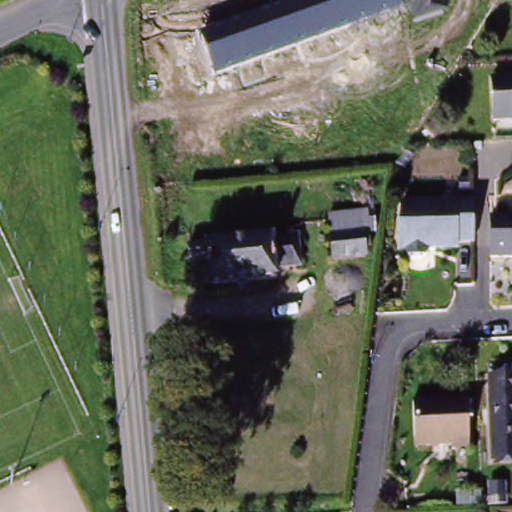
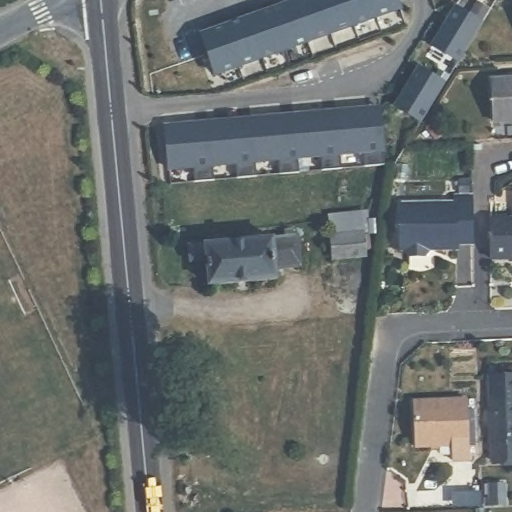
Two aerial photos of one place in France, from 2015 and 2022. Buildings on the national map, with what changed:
unchanged [(405,0),(407,5),(259,56),(244,15),(288,0),(405,0)]
new [(454,60),(427,44),(451,5),(477,22),(454,60)]
unchanged [(204,29),(244,15),(259,56),(218,70),(205,31),(204,29)]
new [(414,66),(440,82),(417,121),(391,105),(414,66)]
unchanged [(490,79),(512,78),(512,120),(492,121),(490,79)]
new [(242,115),(253,114),(284,111),(295,110),(327,107),(339,106),(369,103),(382,102),(384,113),(388,161),(366,163),(365,148),(342,151),(343,165),(324,167),(322,152),(300,154),(301,169),(282,171),(280,156),(257,158),(259,173),(240,175),(239,160),(215,162),(217,177),(197,178),(197,164),(172,166),(168,122),(199,119),(210,118),(242,115)]
unchanged [(510,218),(509,193),(512,193),(512,258),(489,259),(487,220),(510,218)]
unchanged [(401,250),(399,228),(402,204),(456,204),(455,197),(474,196),(475,243),(457,244),(457,249),(430,250),(425,254),(410,254),(404,250),(401,250)]
unchanged [(275,265),(276,275),(210,281),(207,255),(190,257),(189,240),(285,231),(284,225),(293,224),(294,230),(299,230),(301,262),(275,265)]
unchanged [(330,235),(364,232),(365,257),(333,260),(330,235)]
unchanged [(485,369),(512,368),(512,448),(489,449),(485,369)]
unchanged [(453,445),(416,445),(417,400),(470,399),(470,448),(453,448),(453,445)]
unchanged [(500,495),(487,496),(487,484),(500,483),(500,495)]

